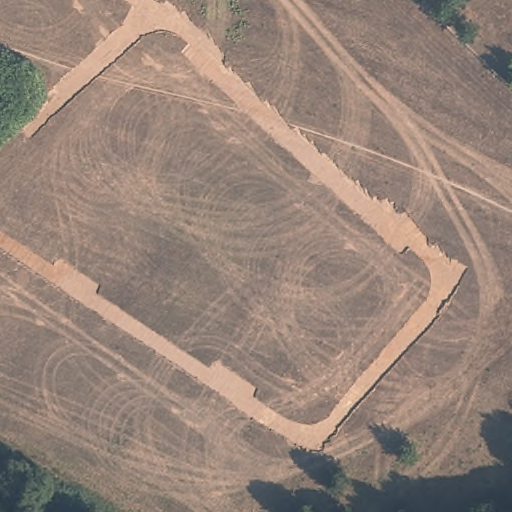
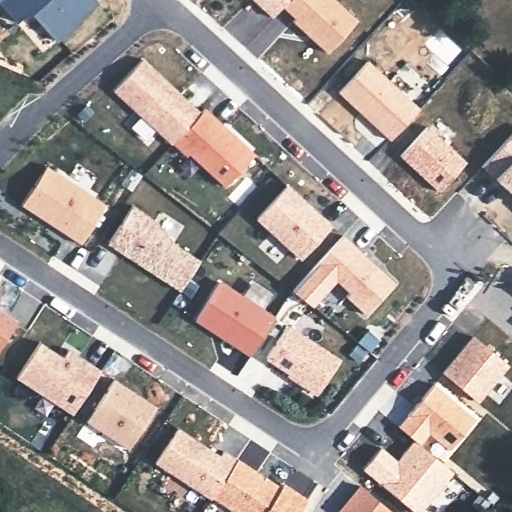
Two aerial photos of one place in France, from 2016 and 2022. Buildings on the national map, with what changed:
unchanged [(77,23),(79,26),(57,42),(30,12),(16,22),(0,3),(0,0),(94,0),(96,4),(77,23)]
new [(285,9),(275,20),(253,0),(293,0),(285,9)]
new [(293,0),(335,0),(360,22),(330,55),(295,23),(297,21),(285,9),(293,0)]
new [(144,62),(201,116),(173,146),(172,147),(115,94),(144,62)]
new [(370,63),(421,111),(392,142),(341,95),(370,63)]
new [(201,116),(205,111),(255,157),(225,190),(189,157),(187,159),(173,146),(201,116)]
new [(427,125),(466,160),(437,190),(400,157),(427,125)]
unchanged [(512,135),(512,194),(481,166),(512,135)]
unchanged [(80,242),(22,204),(47,166),(105,205),(80,242)]
new [(287,189),(331,230),(302,262),(257,221),(287,189)]
new [(134,209),(150,219),(177,248),(200,263),(180,294),(109,247),(134,209)]
new [(318,266),(343,239),(395,286),(366,318),(346,299),(350,296),(336,284),(326,294),(312,310),(292,294),(308,277),(318,266)]
new [(220,285),(275,321),(250,358),(196,322),(220,285)]
new [(18,324),(0,352),(0,312),(18,324)]
new [(287,329),(340,363),(317,397),(301,386),(302,384),(266,361),(287,329)]
new [(473,340),(506,367),(476,404),(443,376),(473,340)]
new [(40,345),(63,360),(69,352),(101,373),(72,417),(16,380),(40,345)]
new [(114,381),(155,409),(127,451),(85,423),(114,381)]
new [(433,387),(475,422),(450,453),(429,435),(420,447),(413,442),(398,430),(433,387)]
new [(155,465),(177,431),(220,459),(223,454),(238,461),(211,499),(155,465)]
new [(396,464),(413,442),(420,447),(452,474),(421,512),(412,512),(362,471),(380,450),(396,464)]
unchanged [(230,512),(211,499),(238,461),(278,489),(265,512),(230,512)]
new [(388,512),(340,512),(360,488),(388,512)]

